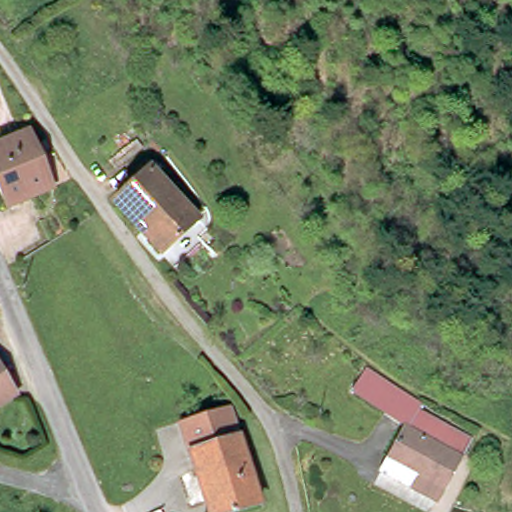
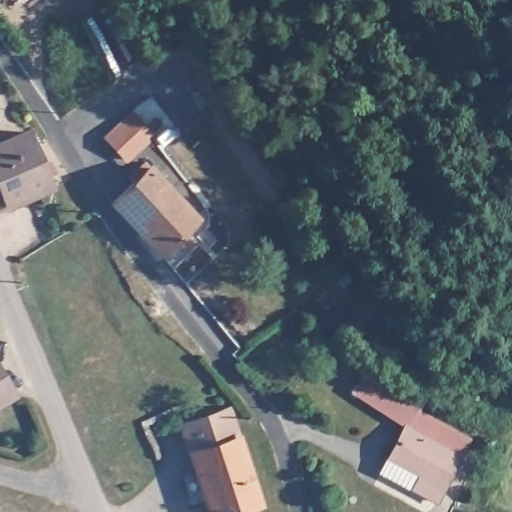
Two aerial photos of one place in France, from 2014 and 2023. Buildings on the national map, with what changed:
new [(135,111),(155,133),(130,157),(110,134),(135,111)]
unchanged [(0,193),(0,142),(27,130),(35,149),(31,152),(46,187),(5,204),(0,193)]
unchanged [(159,248),(112,199),(149,166),(194,215),(159,248)]
unchanged [(401,426),(372,411),(345,396),(357,376),(383,390),(414,408),(410,415),(462,445),(453,461),(398,430),(401,426)]
unchanged [(0,402),(0,382),(8,397),(0,402)]
unchanged [(185,449),(177,421),(224,407),(232,435),(185,449)]
unchanged [(376,473),(398,430),(453,461),(430,502),(376,473)]
unchanged [(252,504),(224,512),(202,512),(185,449),(232,435),(252,504)]

